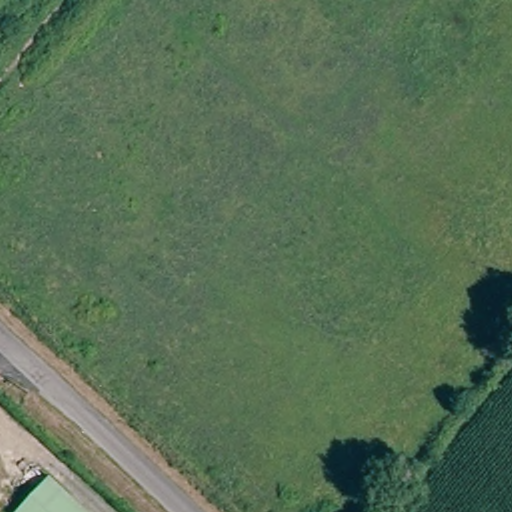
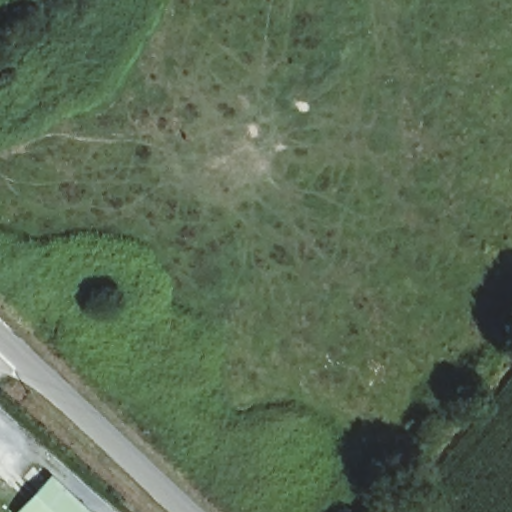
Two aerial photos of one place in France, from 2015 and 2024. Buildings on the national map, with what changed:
unchanged [(0,506),(34,469),(81,512),(7,512),(0,506)]

